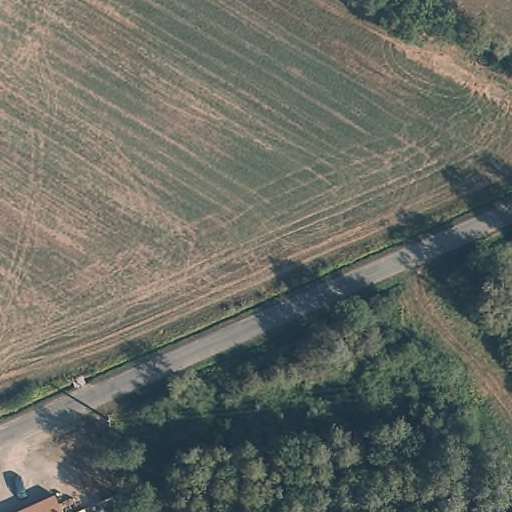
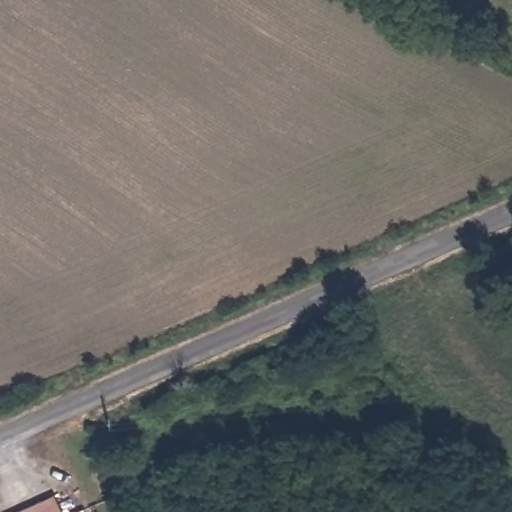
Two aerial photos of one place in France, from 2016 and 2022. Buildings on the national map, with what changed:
unchanged [(59,491),(69,512),(12,512),(59,491)]
unchanged [(88,505),(91,512),(73,512),(88,505)]

